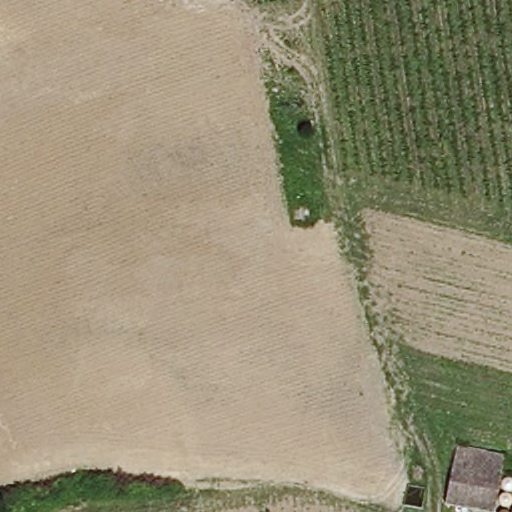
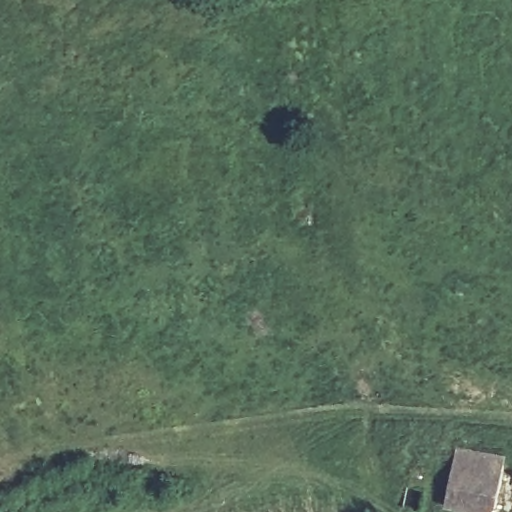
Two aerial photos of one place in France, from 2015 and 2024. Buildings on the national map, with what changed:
unchanged [(498,471),(512,474),(512,512),(485,512),(441,503),(452,445),(501,454),(498,471)]

